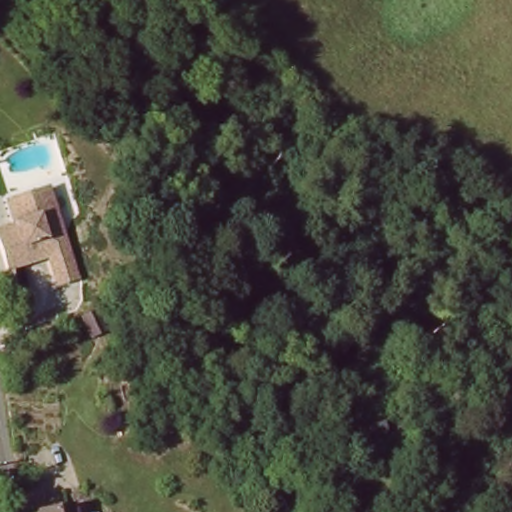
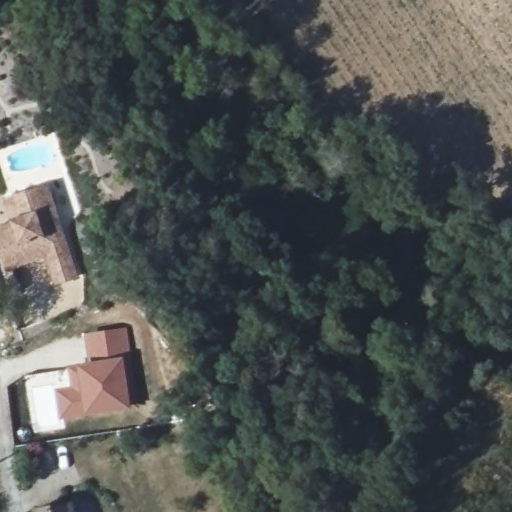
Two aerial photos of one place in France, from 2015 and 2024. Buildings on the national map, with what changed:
unchanged [(81,274),(69,278),(62,281),(51,255),(9,270),(0,246),(0,231),(14,226),(5,202),(12,200),(47,185),(66,236),(81,274)]
new [(131,330),(134,408),(63,413),(60,386),(76,385),(74,363),(90,362),(89,331),(131,330)]
unchanged [(63,507),(64,512),(37,512),(63,507)]

